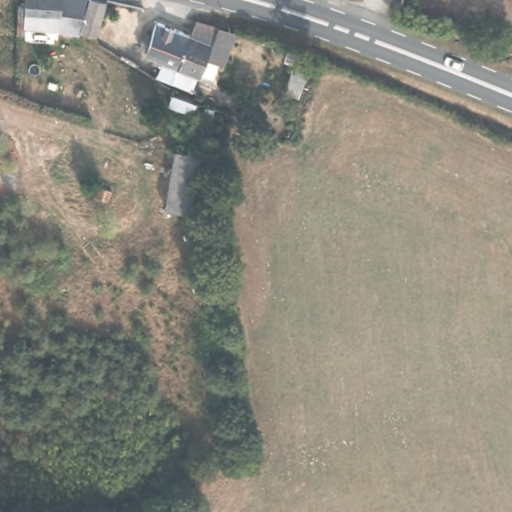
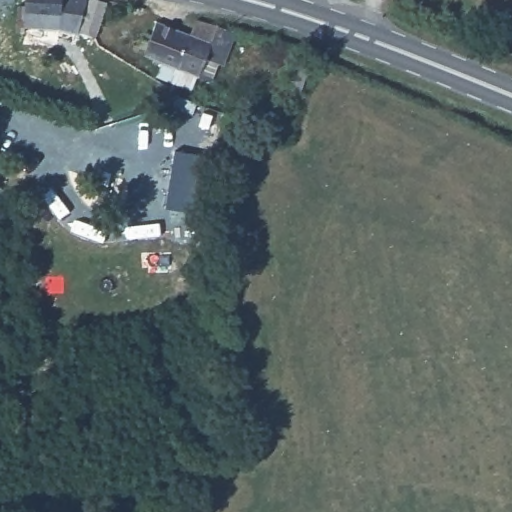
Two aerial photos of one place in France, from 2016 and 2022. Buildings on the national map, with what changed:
unchanged [(83,37),(84,32),(28,26),(28,31),(20,31),(20,5),(28,5),(28,0),(109,0),(99,41),(83,37)]
unchanged [(225,62),(219,62),(212,80),(177,68),(147,55),(148,48),(158,22),(193,35),(201,19),(217,25),(235,30),(225,62)]
unchanged [(275,79),(285,46),(317,54),(305,90),(275,79)]
unchanged [(175,147),(209,153),(201,214),(165,210),(175,147)]

